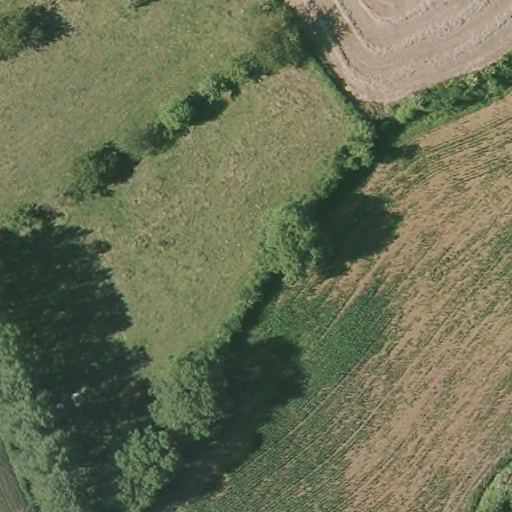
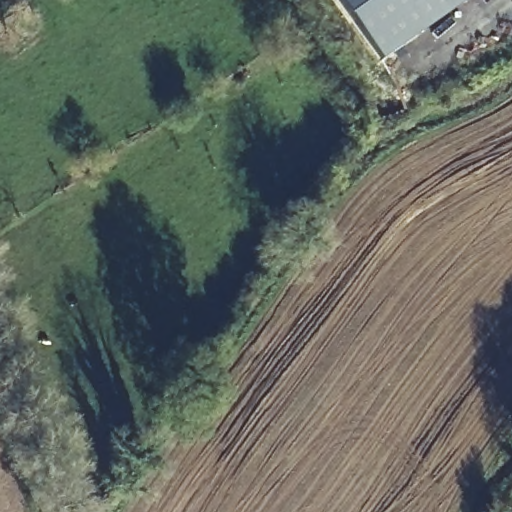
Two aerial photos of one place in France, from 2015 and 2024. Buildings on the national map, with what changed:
new [(385,60),(342,0),(472,0),(385,60)]

